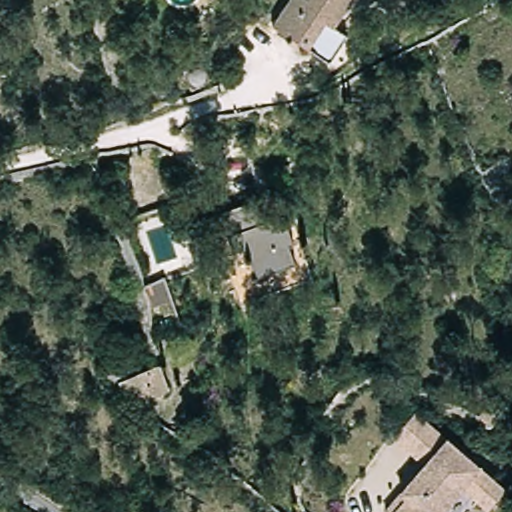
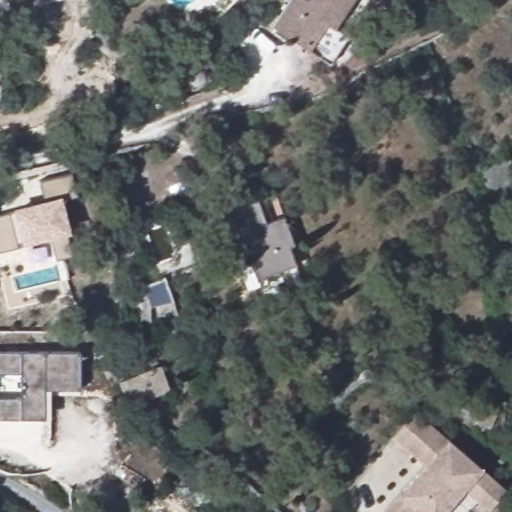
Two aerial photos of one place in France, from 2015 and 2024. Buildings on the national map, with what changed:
unchanged [(332,31),(347,40),(330,67),(274,28),(293,0),(353,0),(332,31)]
unchanged [(392,13),(371,0),(400,0),(392,13)]
unchanged [(178,69),(202,60),(210,84),(187,91),(178,69)]
new [(13,212),(12,208),(43,200),(39,182),(71,173),(77,196),(63,202),(70,234),(66,235),(72,256),(56,261),(50,239),(22,247),(0,252),(0,216),(13,212)]
unchanged [(261,199),(270,223),(288,216),(298,243),(292,246),(298,264),(262,277),(250,246),(236,251),(224,213),(261,199)]
unchanged [(167,271),(175,296),(153,302),(144,282),(167,271)]
new [(78,352),(81,389),(50,390),(49,420),(0,420),(0,398),(19,397),(19,374),(0,374),(0,351),(78,352)]
unchanged [(129,402),(119,380),(159,363),(168,385),(129,402)]
unchanged [(395,495),(422,464),(392,439),(412,414),(503,489),(485,510),(458,487),(438,512),(379,512),(377,510),(392,492),(395,495)]

